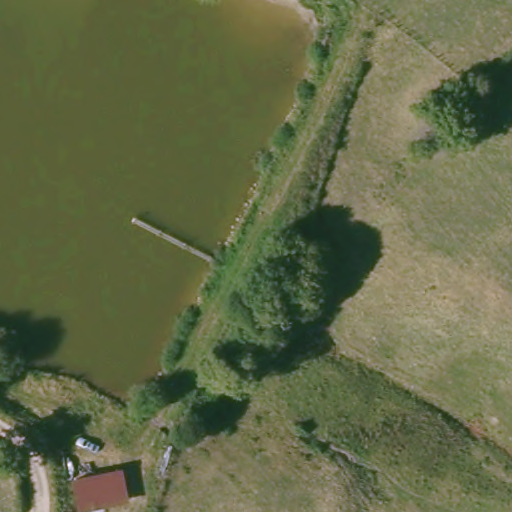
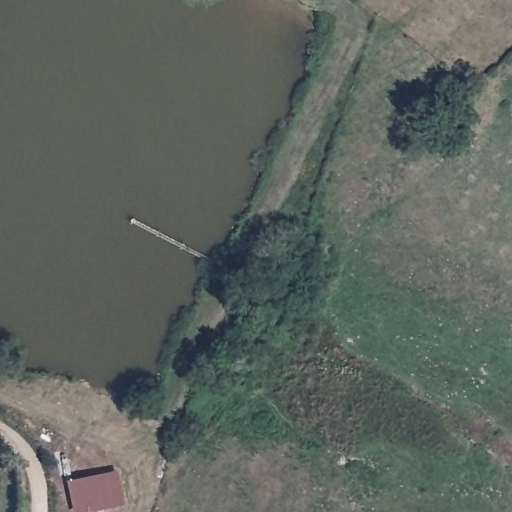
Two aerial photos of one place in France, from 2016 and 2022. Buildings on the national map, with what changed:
unchanged [(127,471),(133,502),(91,512),(82,512),(76,478),(127,471)]

